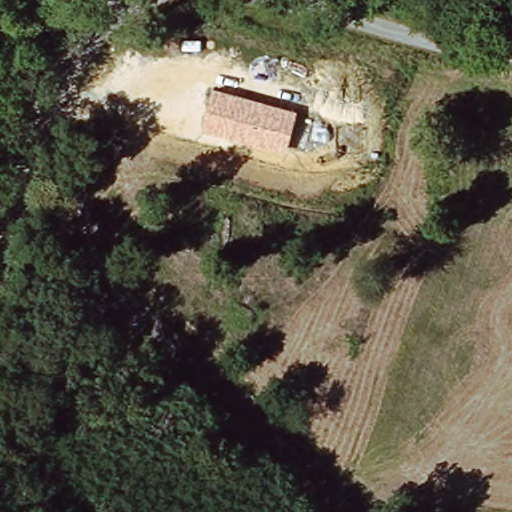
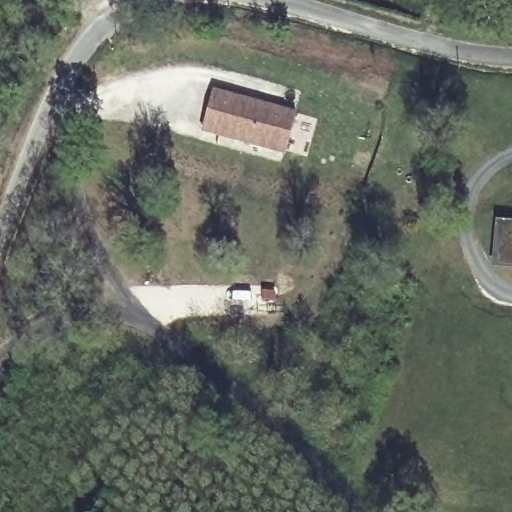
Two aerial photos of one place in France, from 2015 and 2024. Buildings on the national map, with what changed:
unchanged [(297,112),(285,155),(201,132),(214,89),(297,112)]
new [(512,266),(492,264),(497,219),(512,220),(512,266)]

